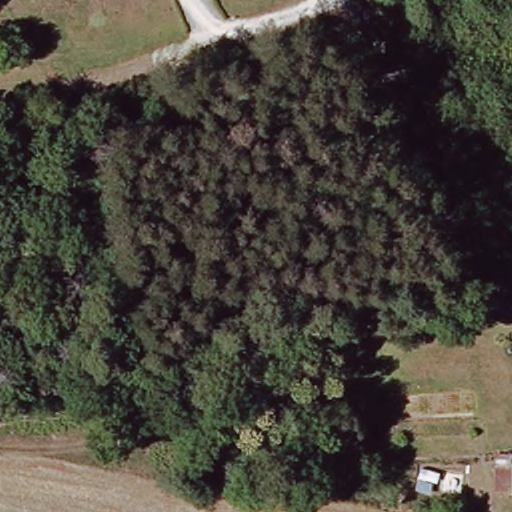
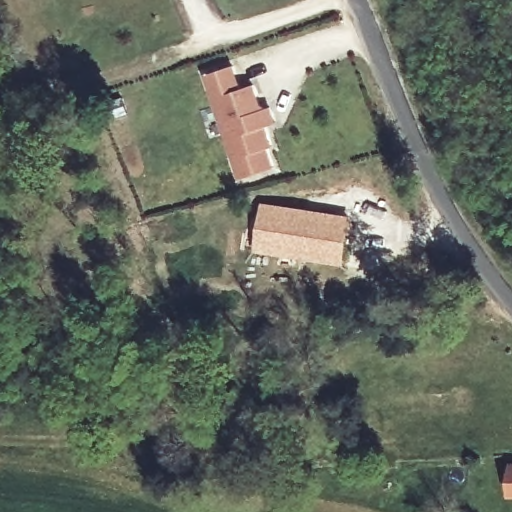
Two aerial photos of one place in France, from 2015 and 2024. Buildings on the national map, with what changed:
new [(203,74),(235,63),(243,87),(256,84),(264,107),(272,105),(278,124),(269,126),(276,147),(270,150),(276,168),(238,180),(203,74)]
new [(261,202),(352,216),(343,268),(253,252),(261,202)]
new [(375,275),(366,262),(402,241),(410,253),(375,275)]
unchanged [(511,498),(512,467),(512,499),(511,498)]

